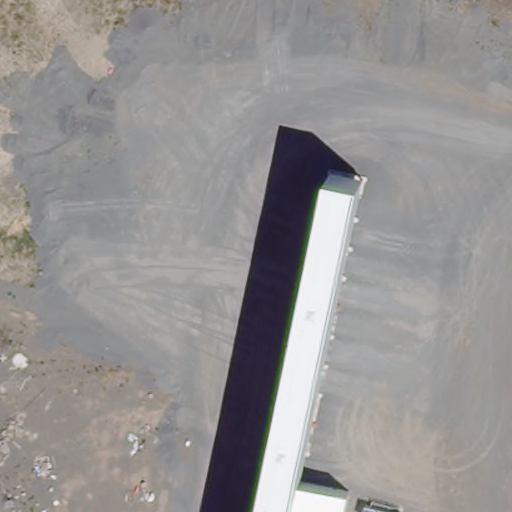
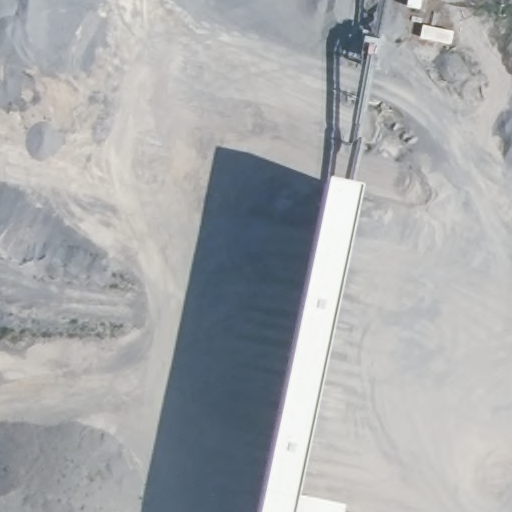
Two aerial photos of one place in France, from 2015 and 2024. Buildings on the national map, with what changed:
unchanged [(341,512),(254,512),(324,187),(356,193),(291,499),(342,508),(341,512)]

